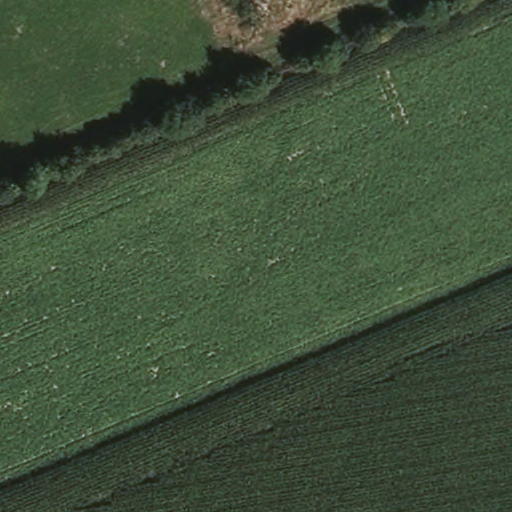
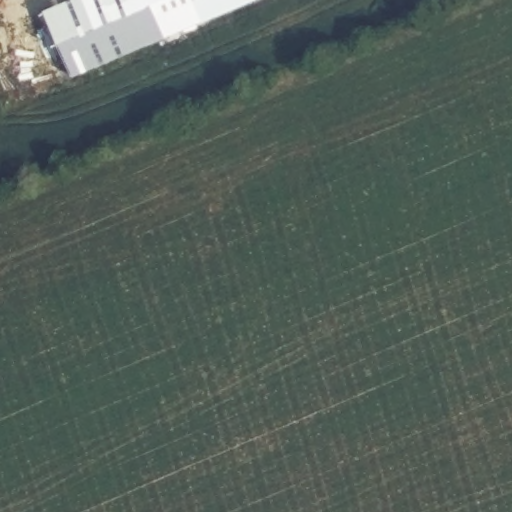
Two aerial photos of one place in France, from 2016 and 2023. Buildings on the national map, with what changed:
new [(169,41),(74,77),(44,11),(72,0),(262,0),(169,41)]

